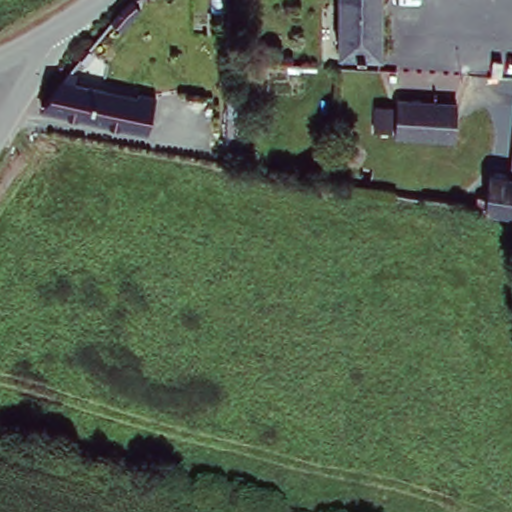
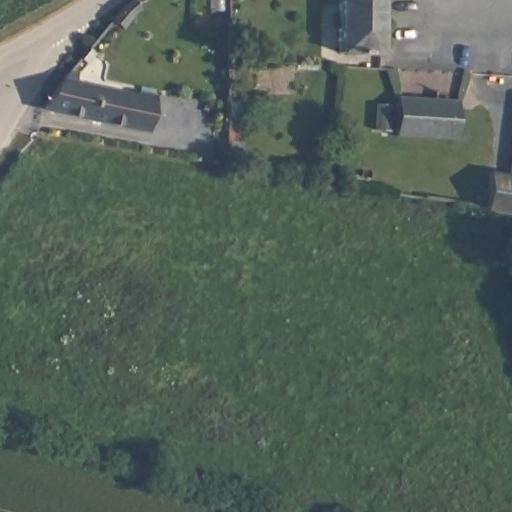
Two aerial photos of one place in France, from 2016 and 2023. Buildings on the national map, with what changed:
unchanged [(329,51),(336,0),(380,0),(374,55),(329,51)]
unchanged [(59,81),(151,102),(143,133),(36,108),(59,81)]
unchanged [(397,106),(408,106),(409,100),(421,101),(420,105),(457,111),(452,140),(393,131),(397,106)]
unchanged [(471,205),(471,201),(473,193),(483,195),(487,176),(507,178),(512,147),(512,212),(471,205)]

